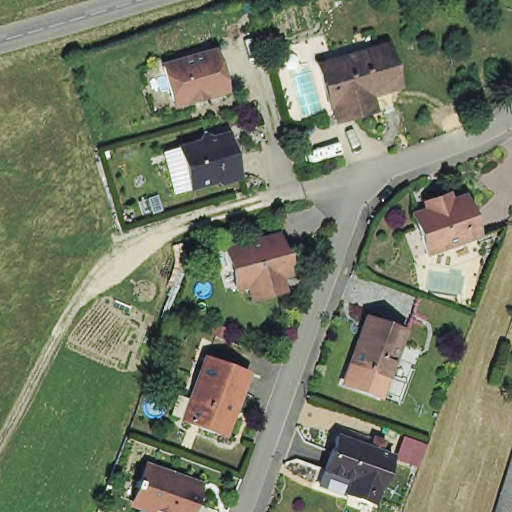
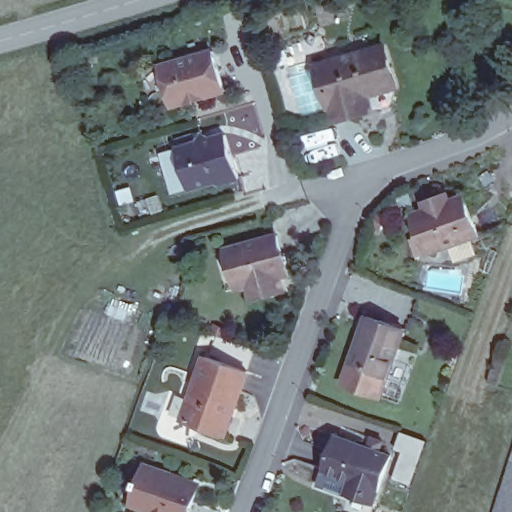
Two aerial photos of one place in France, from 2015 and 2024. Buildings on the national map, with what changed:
unchanged [(317,54),(387,36),(404,83),(370,92),(373,106),(333,123),(317,54)]
unchanged [(227,97),(165,109),(152,64),(212,49),(227,97)]
unchanged [(241,178),(188,190),(172,147),(225,134),(241,178)]
unchanged [(421,259),(404,210),(418,207),(416,196),(452,184),(456,193),(470,189),(485,237),(421,259)]
unchanged [(265,289),(245,293),(242,276),(228,278),(225,259),(222,242),(227,241),(273,234),(277,253),(280,253),(282,262),(279,263),(280,270),(272,272),(275,288),(265,289)]
unchanged [(395,357),(392,356),(387,372),(352,359),(368,315),(402,327),(399,337),(402,338),(395,357)]
unchanged [(202,349),(253,368),(227,434),(178,419),(202,349)]
unchanged [(377,504),(343,492),(348,478),(322,465),(335,431),(393,454),(377,504)]
unchanged [(512,452),(512,512),(493,512),(512,452)]
unchanged [(146,460),(200,480),(189,512),(187,512),(135,494),(138,481),(137,478),(137,474),(142,472),(146,460)]

